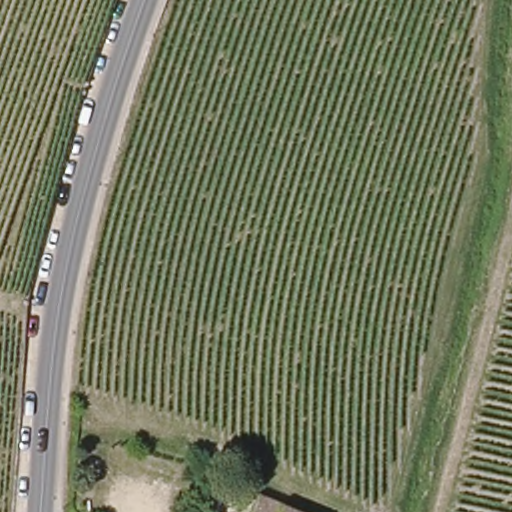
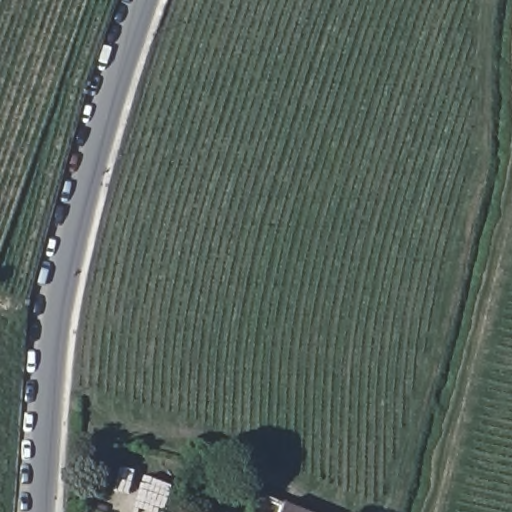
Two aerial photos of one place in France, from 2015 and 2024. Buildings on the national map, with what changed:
unchanged [(302,512),(244,512),(253,491),(302,512)]

